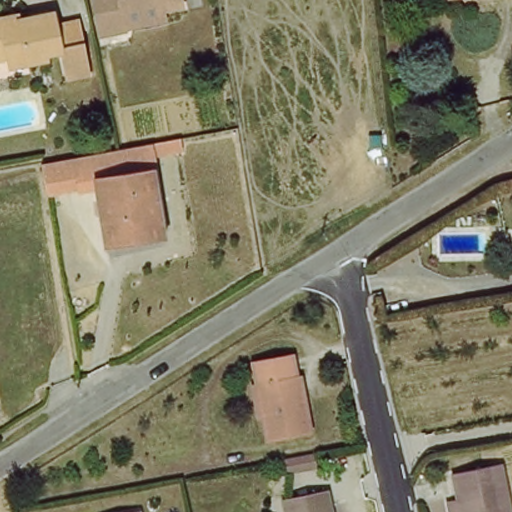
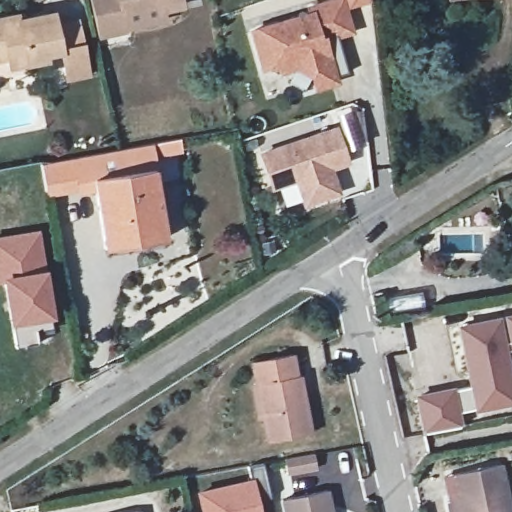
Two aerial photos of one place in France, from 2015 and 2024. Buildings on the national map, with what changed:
unchanged [(96,34),(96,33),(90,3),(89,0),(178,0),(179,5),(161,9),(163,20),(122,29),(96,34)]
new [(332,86),(312,92),(309,81),(292,72),(277,77),(275,69),(260,74),(248,36),(307,19),(305,13),(337,4),(347,36),(320,45),(322,53),(332,86)]
unchanged [(17,11),(19,18),(51,12),(58,49),(43,51),(46,56),(8,64),(5,54),(0,55),(0,15),(17,11)]
unchanged [(77,16),(90,79),(64,84),(56,55),(65,53),(57,20),(77,16)]
unchanged [(332,135),(344,167),(326,173),(335,197),(302,209),(294,184),(270,192),(259,160),(332,135)]
unchanged [(119,149),(178,139),(182,150),(153,154),(155,170),(94,179),(95,184),(81,186),(75,157),(119,149)]
unchanged [(75,157),(81,186),(46,194),(41,164),(75,157)]
unchanged [(94,179),(155,170),(164,235),(103,244),(95,184),(94,179)]
new [(12,326),(10,326),(2,281),(0,282),(0,237),(40,230),(46,270),(54,317),(48,318),(51,325),(35,330),(37,341),(16,346),(12,326)]
new [(415,395),(455,387),(456,390),(470,387),(458,326),(512,316),(512,404),(475,412),(474,409),(460,412),(462,426),(423,434),(415,395)]
unchanged [(292,352),(297,375),(301,374),(310,431),(268,440),(252,359),(292,352)]
unchanged [(309,457),(312,473),(283,479),(279,463),(309,457)]
unchanged [(457,495),(452,471),(500,460),(511,512),(450,512),(447,497),(457,495)]
new [(253,477),(261,512),(199,512),(194,490),(253,477)]
unchanged [(283,495),(327,486),(332,512),(287,512),(283,495)]
unchanged [(138,511),(139,512),(133,512),(138,511)]

